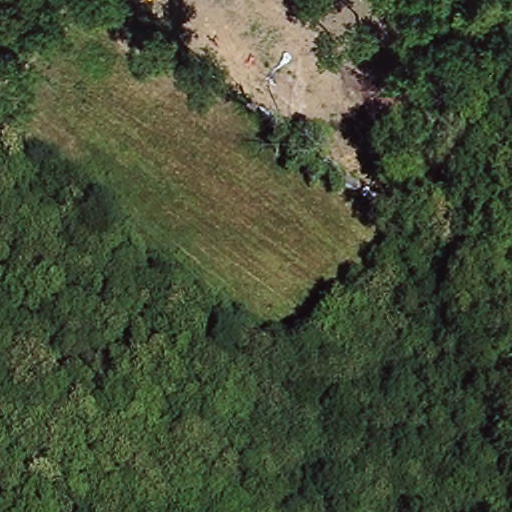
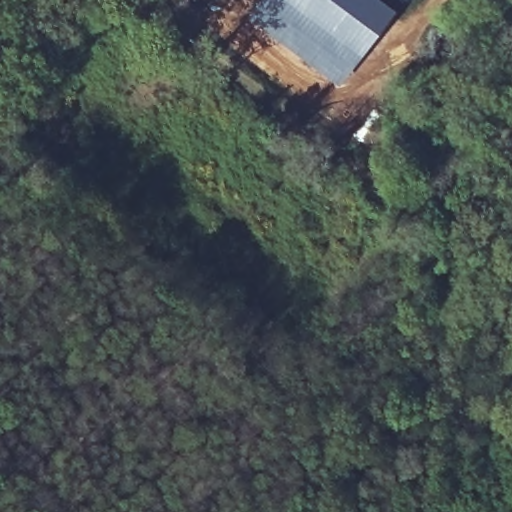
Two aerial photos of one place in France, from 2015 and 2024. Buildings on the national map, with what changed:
new [(250,17),(262,0),(384,0),(397,10),(340,85),(250,17)]

